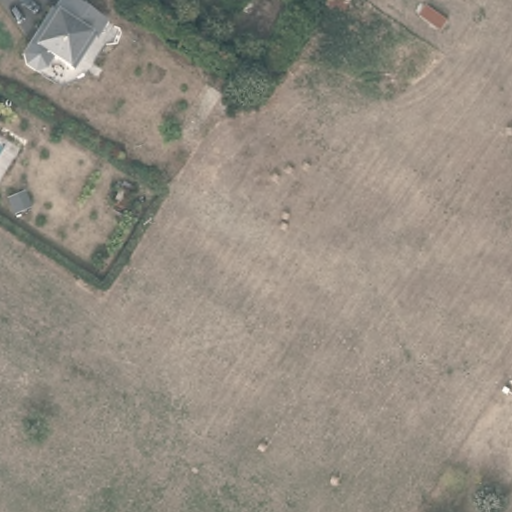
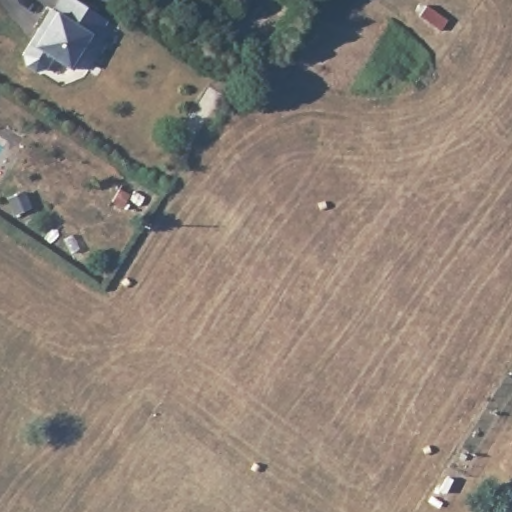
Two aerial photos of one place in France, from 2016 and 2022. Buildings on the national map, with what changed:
unchanged [(94,36),(73,70),(53,56),(46,68),(35,70),(26,65),(24,55),(32,42),(36,45),(43,33),(39,30),(52,9),(54,10),(61,0),(77,0),(107,20),(96,37),(94,36)]

